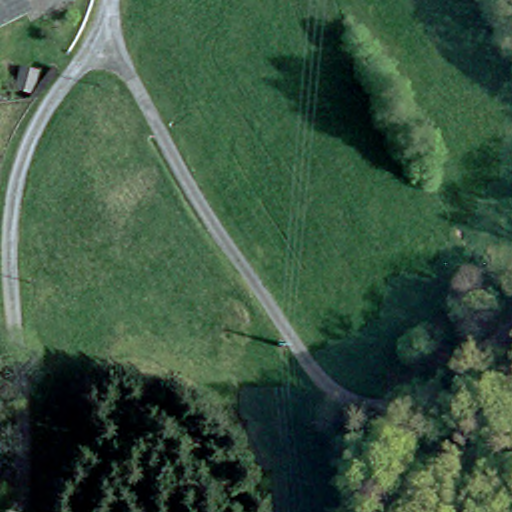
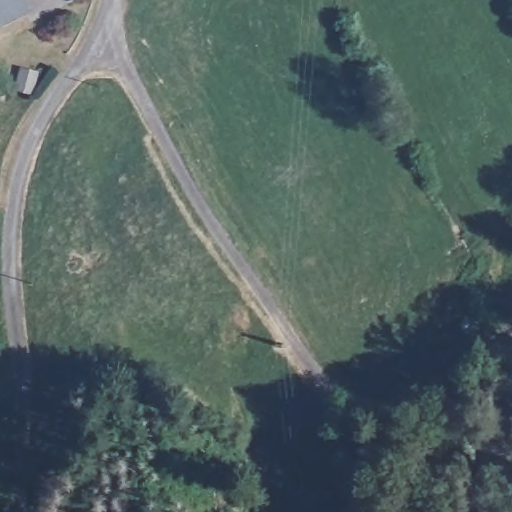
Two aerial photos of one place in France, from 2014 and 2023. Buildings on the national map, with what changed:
unchanged [(13,3),(0,11),(0,0),(12,0),(13,3)]
unchanged [(43,57),(32,80),(17,73),(28,50),(43,57)]

